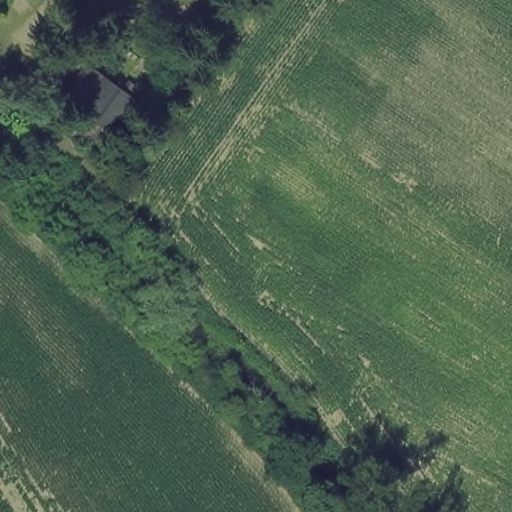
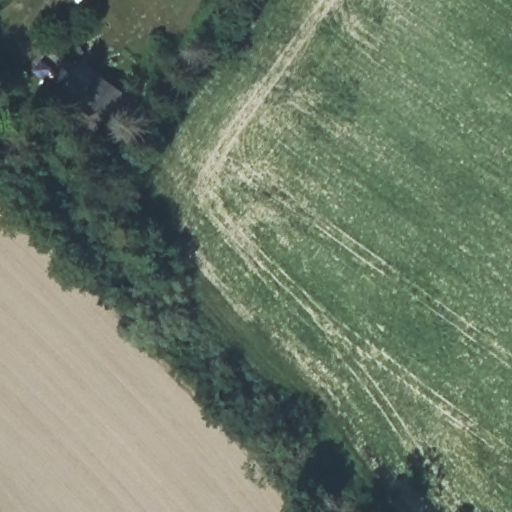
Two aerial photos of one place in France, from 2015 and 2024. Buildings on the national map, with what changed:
unchanged [(128,98),(108,133),(61,101),(86,61),(128,98)]

